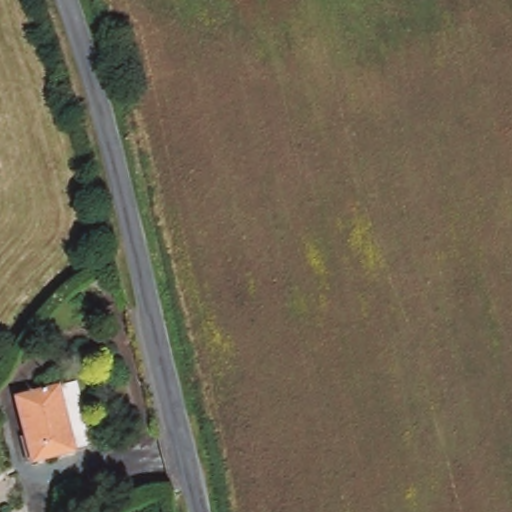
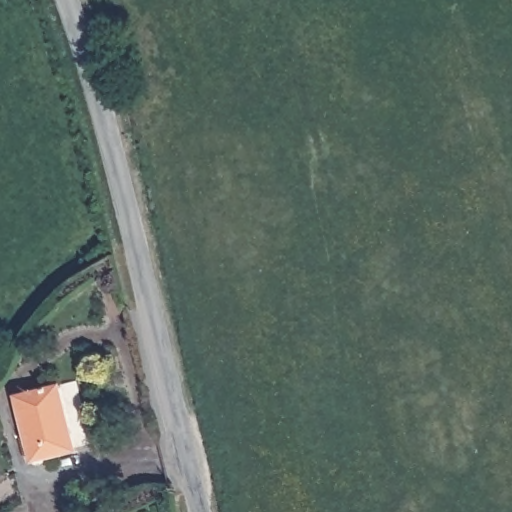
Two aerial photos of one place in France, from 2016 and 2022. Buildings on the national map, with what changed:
unchanged [(57,385),(76,447),(35,461),(16,397),(57,385)]

